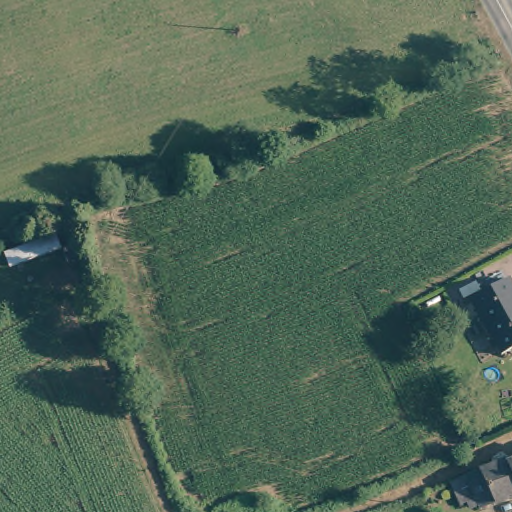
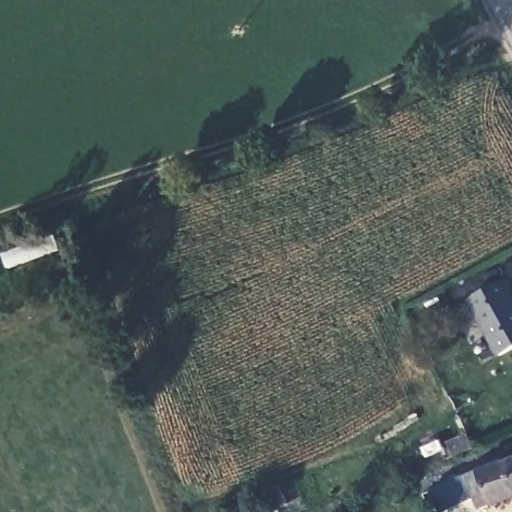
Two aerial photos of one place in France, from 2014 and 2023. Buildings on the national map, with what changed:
unchanged [(512,285),(512,351),(503,356),(472,300),(509,280),(512,285)]
unchanged [(451,483),(466,477),(507,460),(508,462),(512,473),(512,498),(480,510),(476,501),(461,508),(451,483)]
unchanged [(508,462),(512,461),(512,473),(508,462)]

